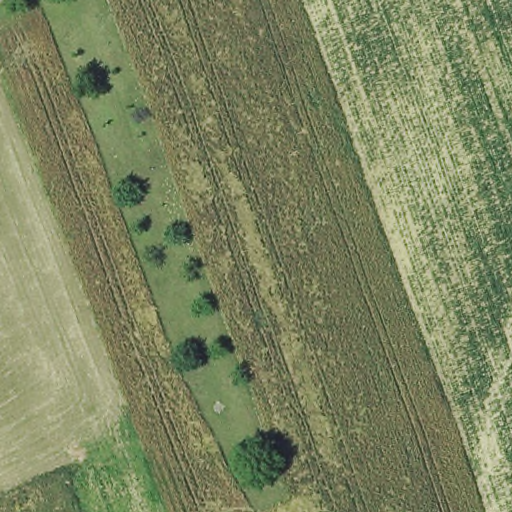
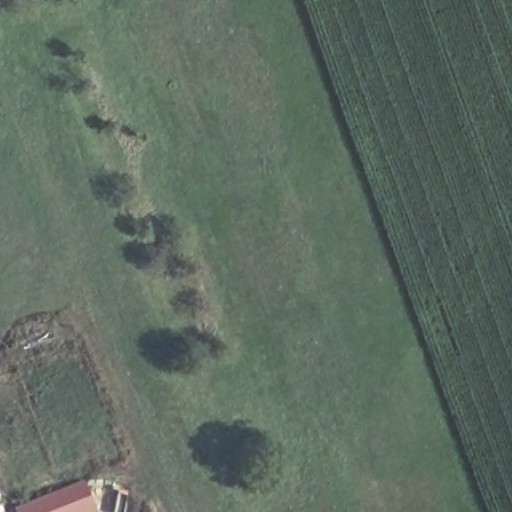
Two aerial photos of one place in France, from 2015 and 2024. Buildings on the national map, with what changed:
new [(98,512),(20,512),(88,480),(98,512)]

